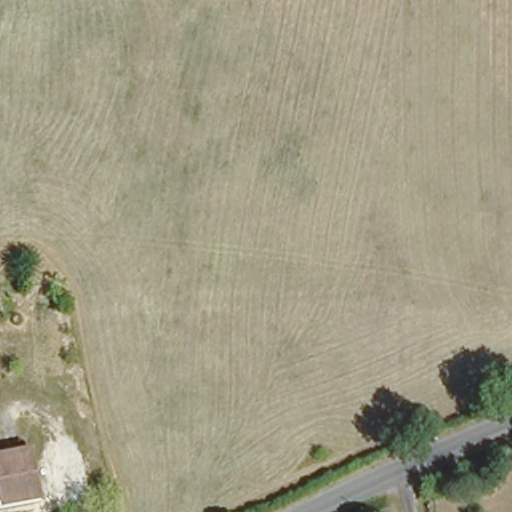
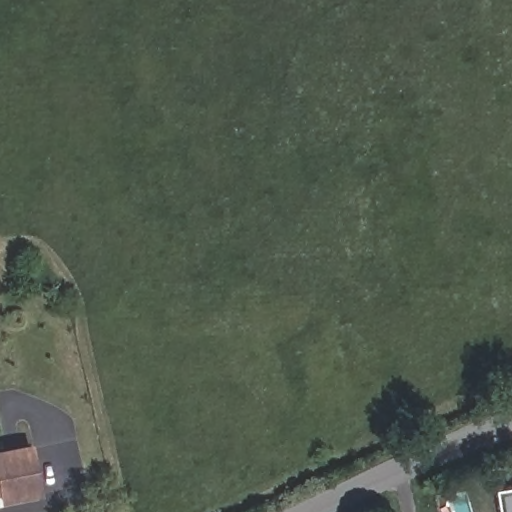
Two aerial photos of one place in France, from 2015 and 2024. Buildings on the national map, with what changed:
unchanged [(45,496),(8,504),(5,493),(0,494),(0,454),(33,447),(45,496)]
new [(492,494),(512,489),(512,512),(497,512),(492,494)]

